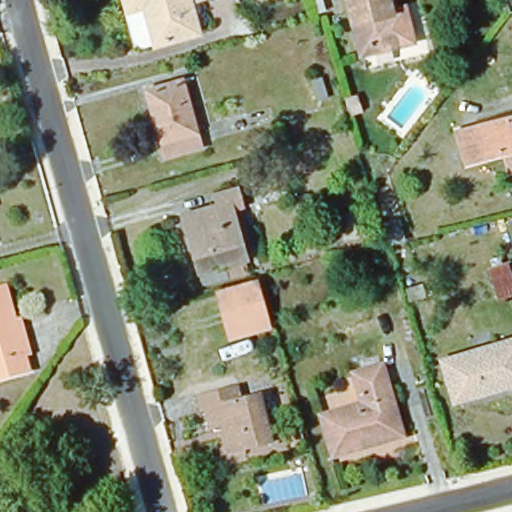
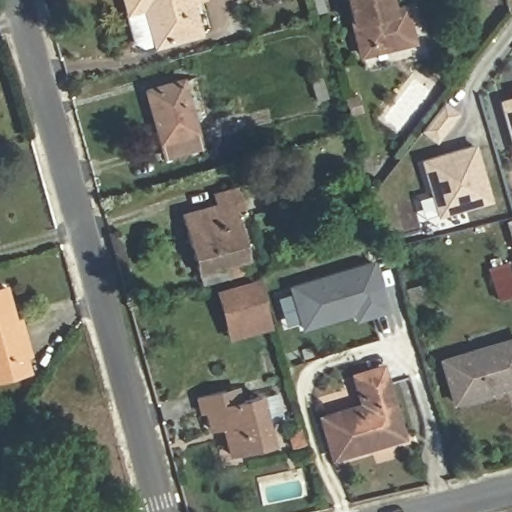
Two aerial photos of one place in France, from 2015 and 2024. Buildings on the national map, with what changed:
unchanged [(133,7),(136,6),(134,0),(197,0),(205,27),(163,39),(151,42),(141,37),(133,7)]
unchanged [(412,43),(357,56),(344,0),(387,0),(390,10),(403,7),(406,18),(412,43)]
unchanged [(203,149),(166,159),(149,92),(185,82),(203,149)]
new [(497,100),(510,95),(509,89),(512,89),(512,150),(497,100)]
new [(438,139),(422,127),(441,104),(456,116),(438,139)]
demolished [(504,175),(497,158),(465,169),(455,131),(512,111),(512,174),(504,175)]
new [(438,216),(418,159),(474,143),(492,200),(438,216)]
unchanged [(244,213),(234,216),(247,265),(200,278),(185,221),(220,211),(217,202),(239,195),(244,213)]
new [(505,221),(512,219),(512,246),(505,221)]
new [(374,260),(388,311),(354,321),(353,314),(301,330),(287,285),(374,260)]
unchanged [(488,269),(508,262),(512,273),(512,298),(500,302),(488,269)]
unchanged [(258,288),(269,330),(231,340),(219,298),(258,288)]
unchanged [(27,359),(31,373),(0,382),(0,293),(8,290),(16,323),(23,321),(32,358),(27,359)]
unchanged [(456,403),(443,361),(512,340),(512,385),(456,403)]
unchanged [(394,441),(334,459),(322,418),(364,405),(355,376),(383,366),(392,396),(405,438),(394,441)]
unchanged [(243,408),(262,403),(274,449),(232,460),(224,432),(212,435),(207,416),(202,418),(199,405),(240,395),(243,408)]

